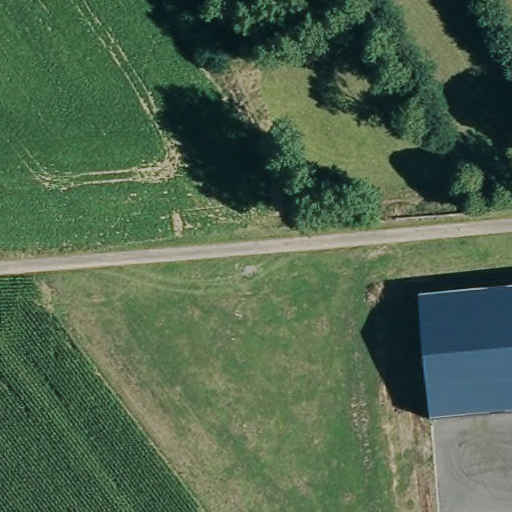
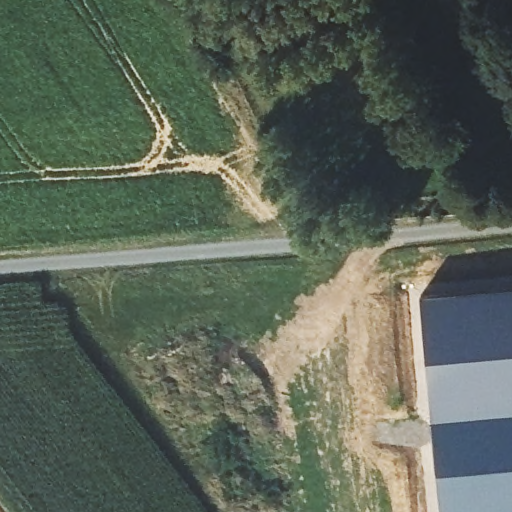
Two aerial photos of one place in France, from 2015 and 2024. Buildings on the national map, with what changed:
unchanged [(432,421),(421,296),(512,287),(512,413),(432,421)]
new [(441,512),(432,421),(512,413),(512,512),(441,512)]

